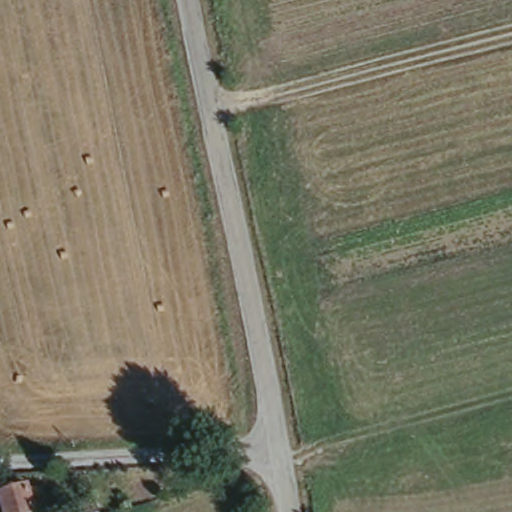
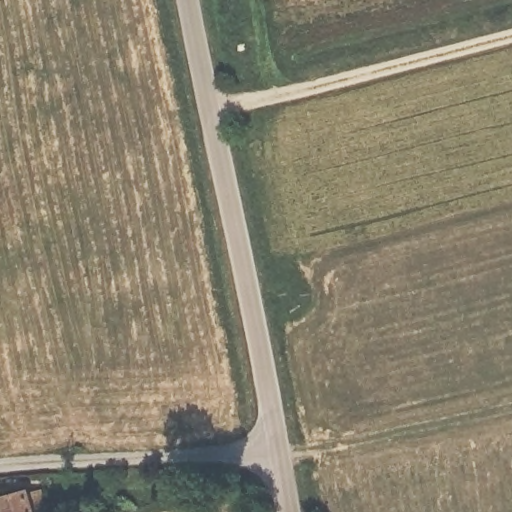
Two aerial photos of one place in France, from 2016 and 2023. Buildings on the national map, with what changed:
unchanged [(32,492),(41,488),(47,508),(38,511),(39,512),(5,512),(1,498),(30,487),(32,492)]

